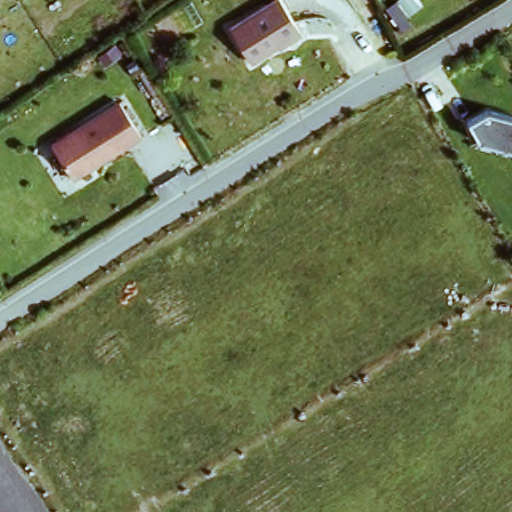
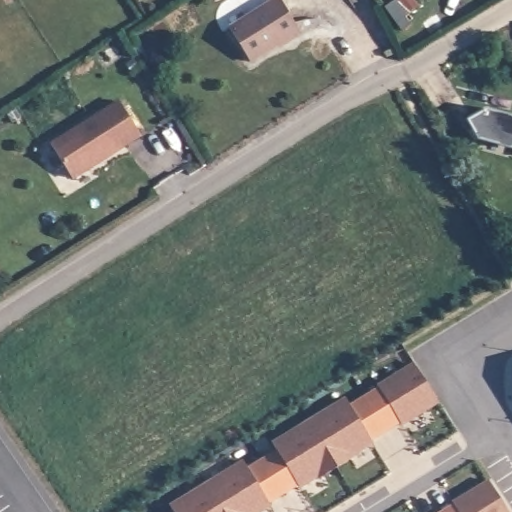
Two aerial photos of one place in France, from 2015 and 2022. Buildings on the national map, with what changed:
unchanged [(250,57),(230,23),(268,0),(281,0),(299,27),(250,57)]
unchanged [(124,97),(145,130),(77,174),(55,141),(124,97)]
unchanged [(512,117),(512,151),(480,144),(468,120),(489,108),(512,117)]
new [(382,390),(380,387),(415,365),(436,398),(420,408),(422,412),(402,425),(400,422),(386,431),(367,399),(382,390)]
new [(348,401),(353,408),(367,399),(386,431),(371,440),(373,443),(350,457),(351,460),(338,468),(311,424),(348,401)]
new [(279,453),(275,446),(311,424),(338,468),(324,476),(323,474),(300,488),(298,485),(283,494),(265,462),(279,453)]
new [(245,464),(250,471),(265,462),(283,494),(269,503),(271,506),(260,512),(224,512),(209,487),(245,464)]
new [(475,490),(489,482),(508,512),(445,512),(477,493),(475,490)]
new [(172,509),(209,487),(224,512),(173,512),(172,509)]

